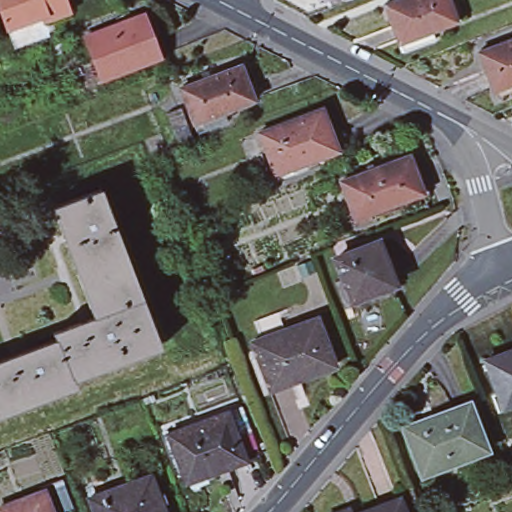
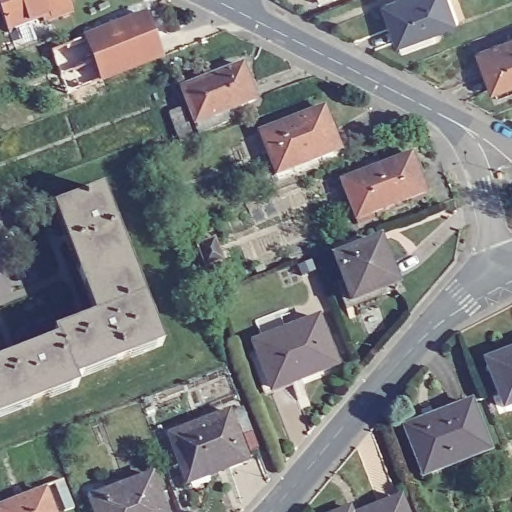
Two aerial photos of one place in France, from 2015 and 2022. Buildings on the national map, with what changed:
unchanged [(7,31),(0,13),(0,0),(63,0),(66,9),(7,31)]
unchanged [(398,45),(383,6),(398,0),(447,0),(456,22),(430,32),(433,40),(401,53),(398,45)]
unchanged [(143,15),(158,58),(102,79),(86,36),(143,15)]
unchanged [(491,92),(477,54),(512,41),(512,93),(494,100),(491,92)]
unchanged [(198,134),(193,123),(181,89),(240,66),(254,101),(223,111),(228,122),(198,134)]
unchanged [(321,111),(337,153),(274,177),(258,134),(321,111)]
unchanged [(407,157),(419,194),(349,216),(337,180),(407,157)]
unchanged [(54,341),(51,334),(96,317),(55,207),(100,190),(158,345),(71,377),(73,381),(73,384),(0,412),(0,361),(54,341)]
unchanged [(331,263),(374,245),(392,284),(348,302),(341,304),(333,284),(339,281),(331,263)]
unchanged [(316,319),(334,367),(298,381),(294,374),(266,385),(249,343),(316,319)]
unchanged [(512,404),(502,408),(484,362),(512,351),(512,404)]
unchanged [(463,391),(493,468),(426,493),(397,416),(463,391)]
unchanged [(204,427),(202,422),(228,413),(246,461),(226,468),(223,462),(183,477),(169,440),(204,427)]
unchanged [(147,473),(162,512),(92,512),(86,497),(147,473)]
unchanged [(43,491),(51,512),(0,512),(0,506),(43,491)]
unchanged [(399,502),(403,512),(372,512),(399,502)]
unchanged [(348,509),(349,512),(338,512),(348,509)]

